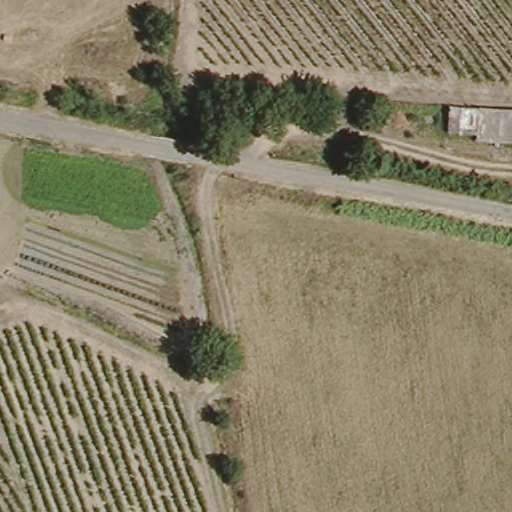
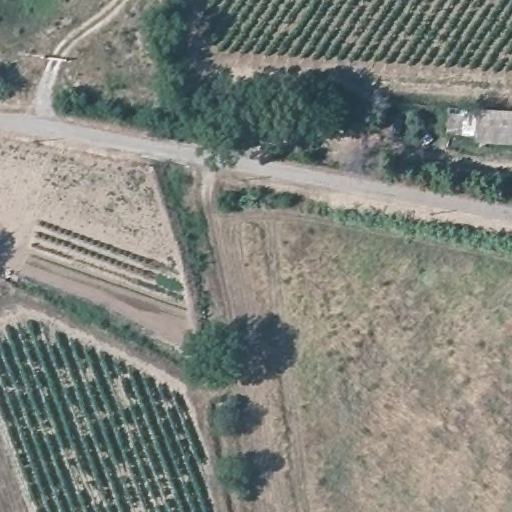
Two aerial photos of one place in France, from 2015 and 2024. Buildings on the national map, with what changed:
unchanged [(512,117),(512,148),(471,145),(471,140),(442,137),(443,113),(512,117)]

